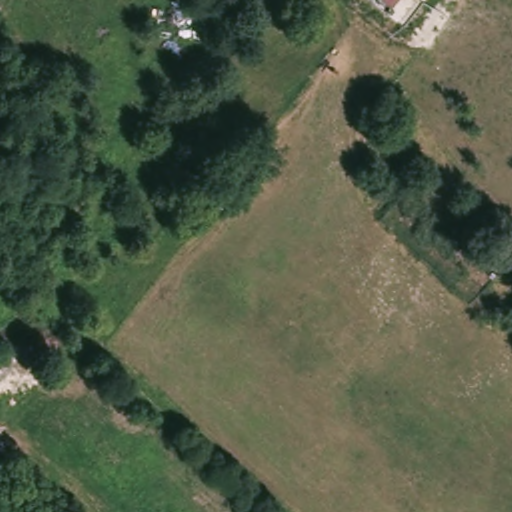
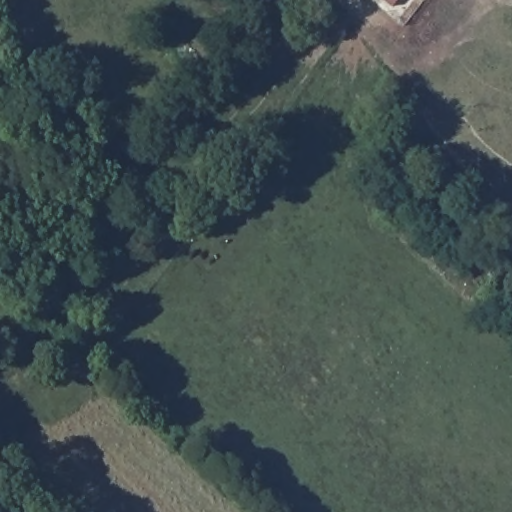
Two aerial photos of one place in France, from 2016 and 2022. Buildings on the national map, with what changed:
unchanged [(382,0),(397,0),(391,6),(382,0)]

